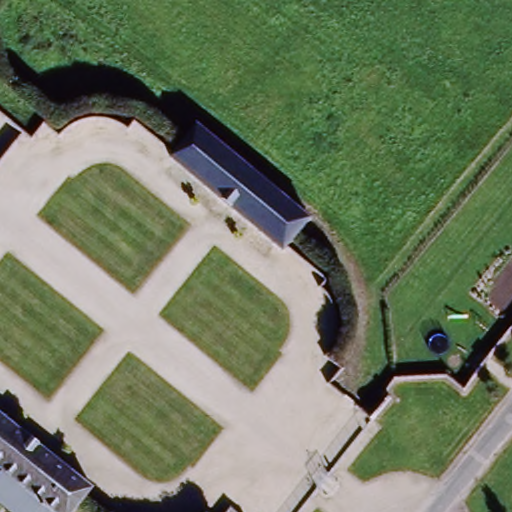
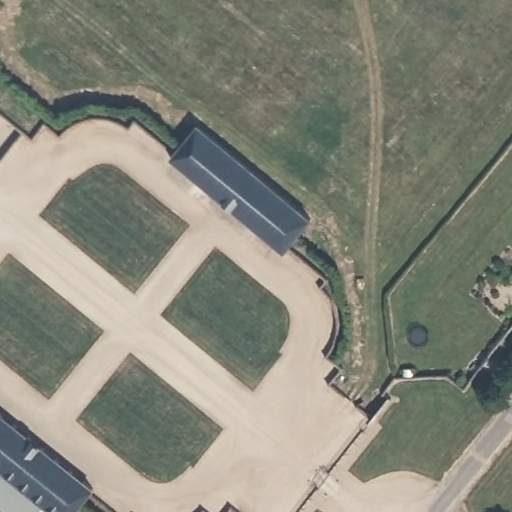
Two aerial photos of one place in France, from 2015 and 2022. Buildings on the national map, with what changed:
unchanged [(170,156),(174,151),(196,125),(197,125),(310,217),(285,249),(170,156)]
unchanged [(381,391),(388,396),(392,401),(375,423),(363,413),(381,391)]
unchanged [(93,491),(88,496),(76,512),(10,512),(0,504),(0,475),(2,473),(0,471),(0,418),(93,491)]

